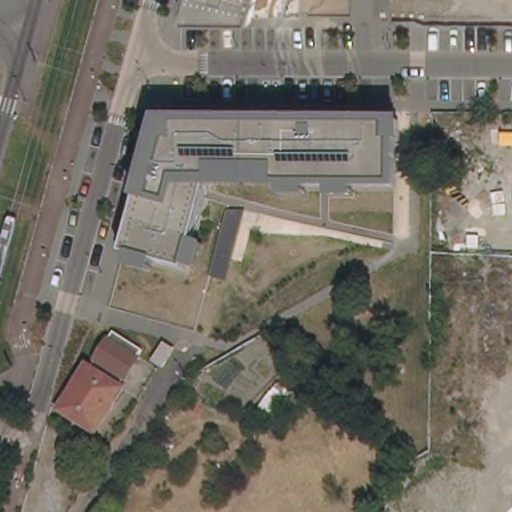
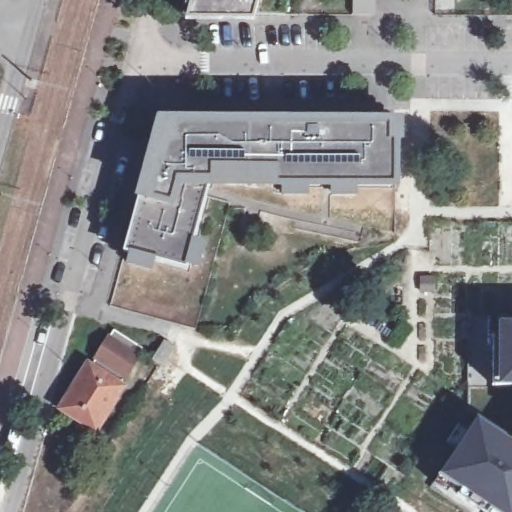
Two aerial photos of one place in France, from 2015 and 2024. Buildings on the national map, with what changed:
unchanged [(254,16),(191,19),(196,0),(292,0),(287,16),(254,16)]
unchanged [(212,186),(187,270),(121,256),(137,199),(160,120),(399,118),(400,185),(212,186)]
new [(434,274),(434,289),(422,289),(422,275),(434,274)]
new [(493,333),(498,333),(498,316),(512,317),(512,384),(493,384),(493,333)]
unchanged [(99,356),(113,333),(142,352),(127,376),(120,388),(90,369),(99,356)]
new [(173,348),(162,366),(151,359),(163,341),(173,348)]
unchanged [(123,390),(114,404),(109,402),(91,429),(61,410),(87,367),(90,369),(120,388),(123,390)]
new [(489,512),(488,512),(457,492),(461,487),(439,472),(477,413),(512,436),(512,512),(499,512),(491,507),(489,512)]

